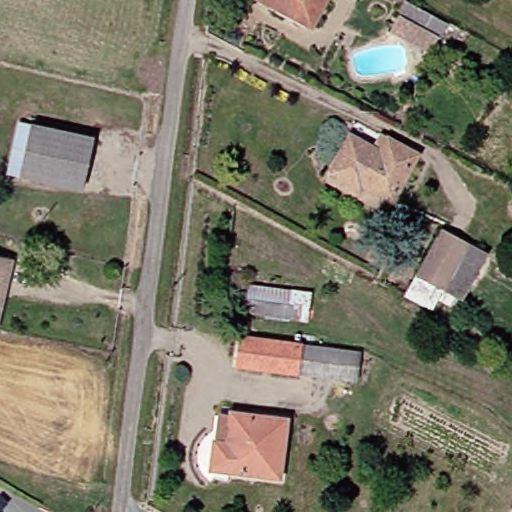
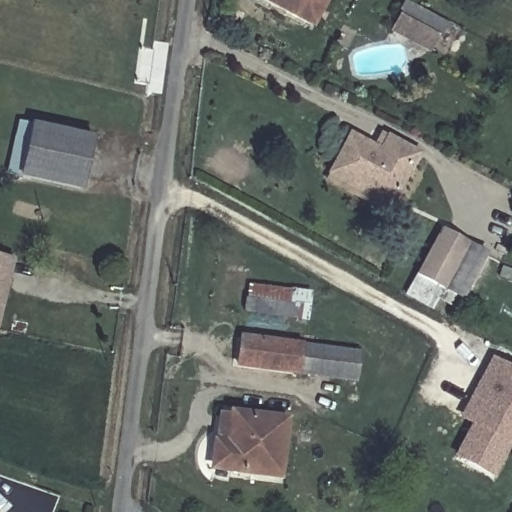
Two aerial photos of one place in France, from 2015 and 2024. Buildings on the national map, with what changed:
unchanged [(317,0),(302,26),(257,0),(317,0)]
unchanged [(410,14),(429,24),(423,35),(405,25),(410,14)]
unchanged [(30,126),(88,142),(76,191),(16,177),(30,126)]
unchanged [(353,186),(348,192),(320,176),(341,139),(368,154),(377,140),(408,158),(382,202),(353,186)]
unchanged [(436,228),(463,243),(439,288),(412,273),(436,228)]
unchanged [(250,302),(297,308),(295,322),(248,316),(250,302)]
unchanged [(234,364),(237,340),(346,355),(342,378),(234,364)]
new [(476,422),(470,420),(464,416),(497,356),(512,364),(512,442),(511,441),(496,467),(462,449),(476,422)]
unchanged [(278,422),(276,477),(224,471),(218,470),(215,466),(214,461),(214,456),(216,452),(219,448),(223,446),(225,445),(225,437),(211,437),(212,418),(226,419),(227,415),(278,422)]

